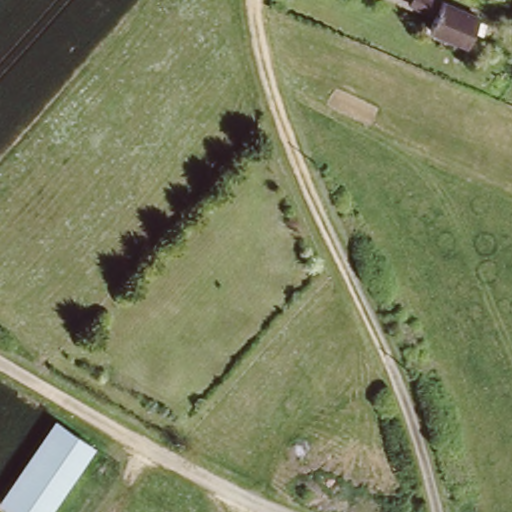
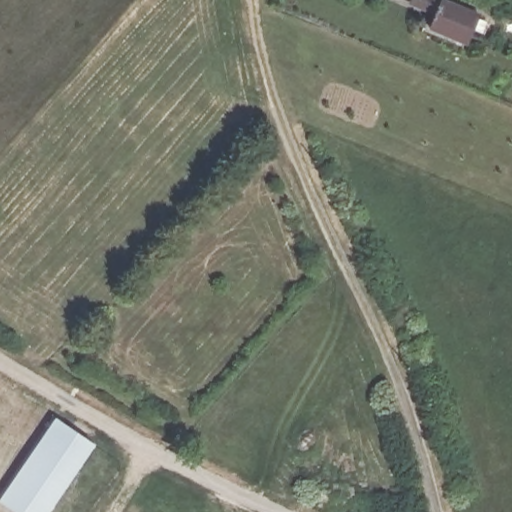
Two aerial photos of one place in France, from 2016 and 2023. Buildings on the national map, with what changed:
unchanged [(480,12),(466,43),(425,29),(439,0),(447,0),(480,12)]
unchanged [(46,512),(15,512),(0,502),(0,500),(58,415),(95,440),(46,512)]

